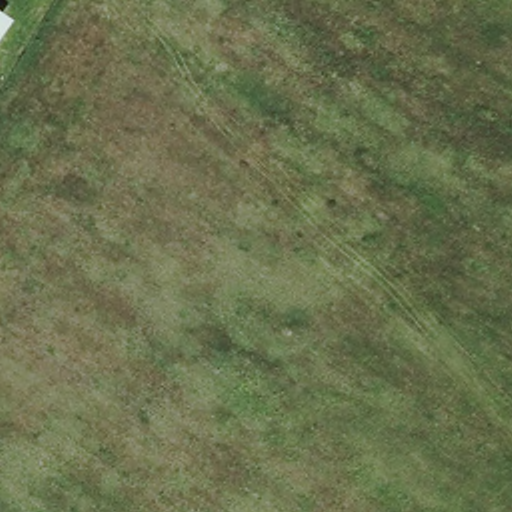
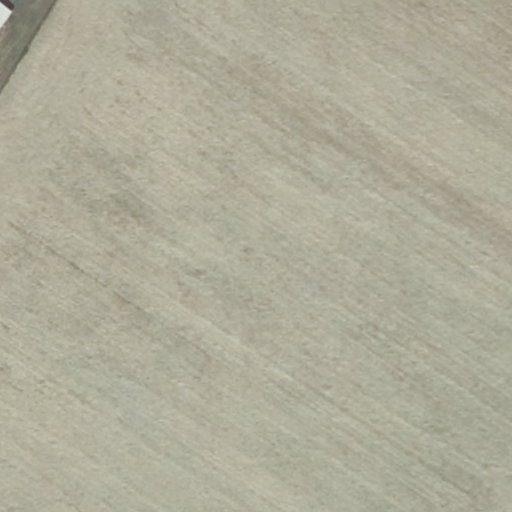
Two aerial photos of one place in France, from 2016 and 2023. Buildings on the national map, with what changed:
unchanged [(5,21),(0,29),(0,18),(5,21)]

